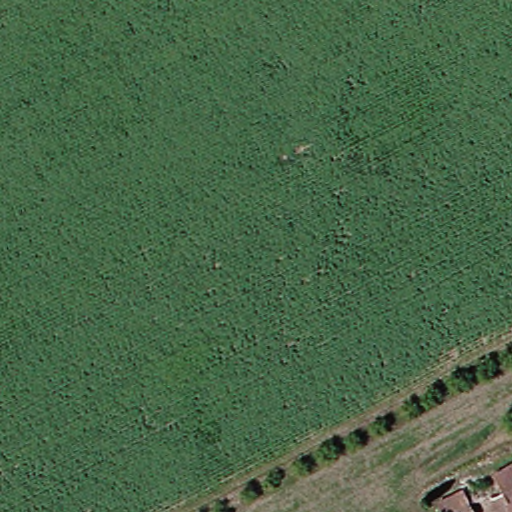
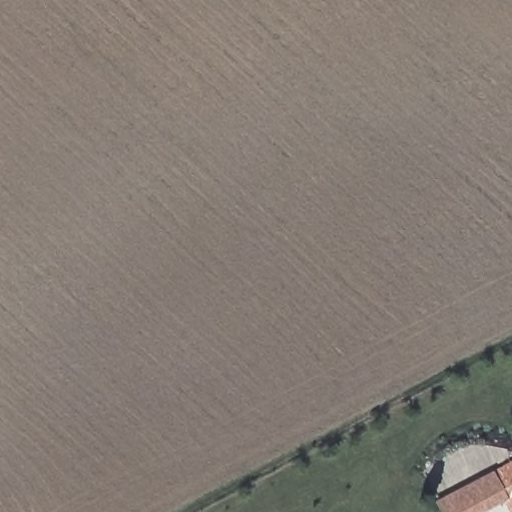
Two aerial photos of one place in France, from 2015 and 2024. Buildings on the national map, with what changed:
unchanged [(512,512),(509,512),(504,503),(507,501),(492,473),(512,464),(512,512)]

